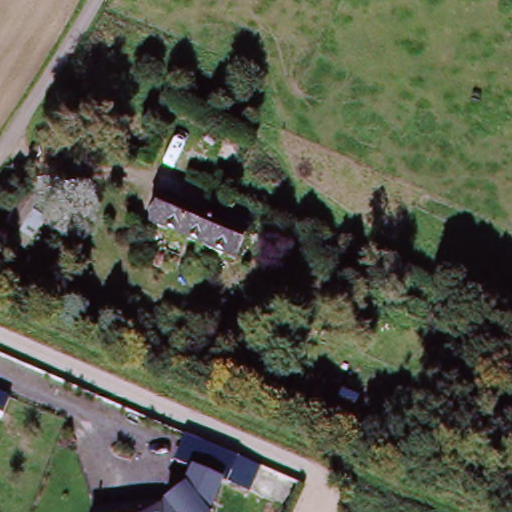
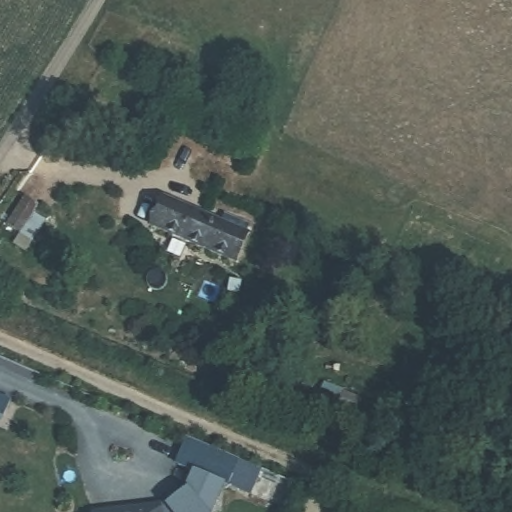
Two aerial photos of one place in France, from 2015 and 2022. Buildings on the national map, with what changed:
unchanged [(10,174),(25,185),(7,211),(0,206),(0,188),(10,174)]
unchanged [(170,202),(247,237),(235,265),(157,230),(170,202)]
unchanged [(241,458),(230,485),(181,467),(192,438),(241,458)]
unchanged [(240,461),(260,468),(250,496),(230,485),(240,461)]
unchanged [(166,506),(186,490),(183,488),(191,472),(193,471),(225,482),(222,485),(211,512),(166,512),(165,507),(166,506)]
unchanged [(166,512),(100,512),(100,511),(165,507),(166,512)]

